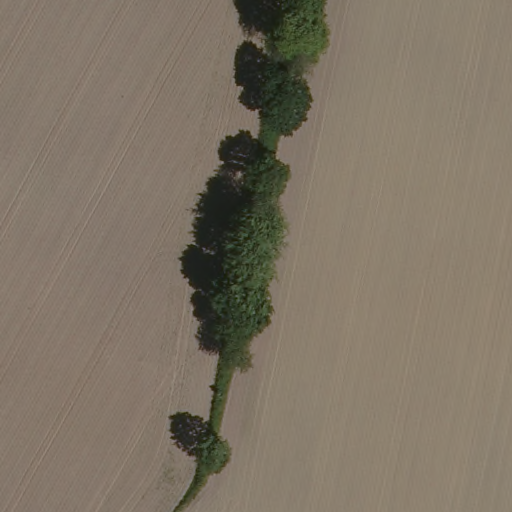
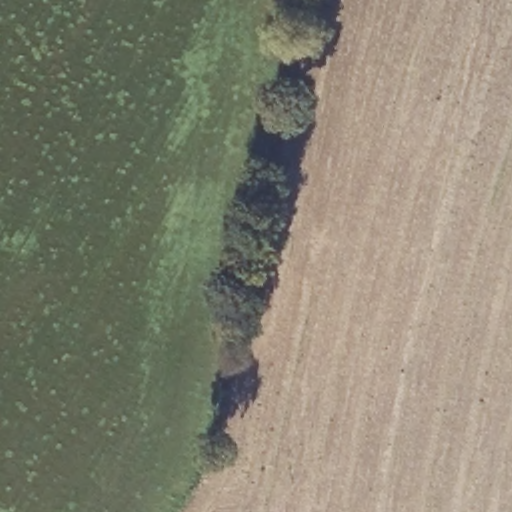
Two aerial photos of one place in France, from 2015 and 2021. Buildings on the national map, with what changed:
[]

